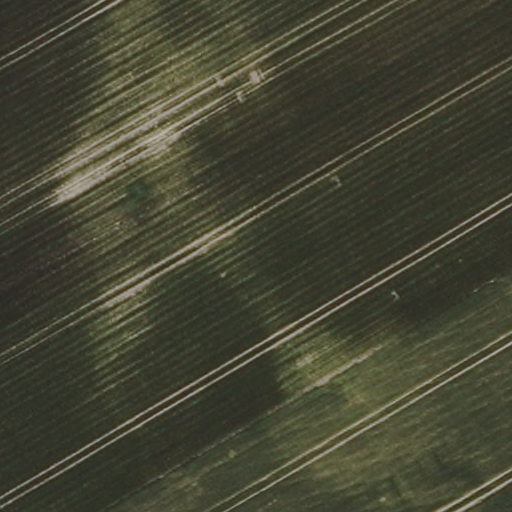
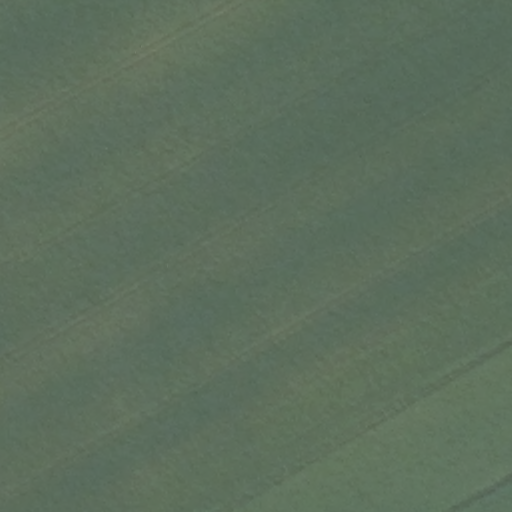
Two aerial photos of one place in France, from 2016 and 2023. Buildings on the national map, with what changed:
[]

